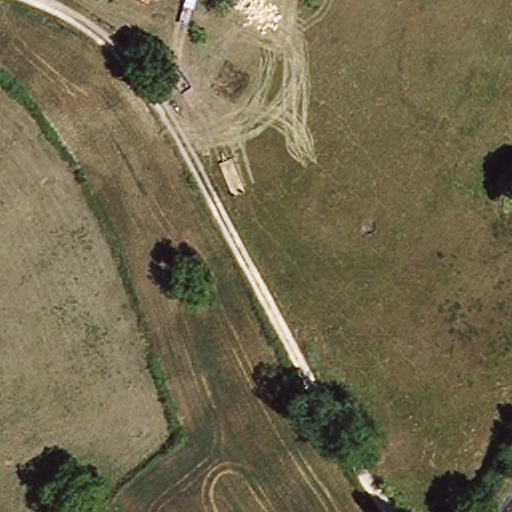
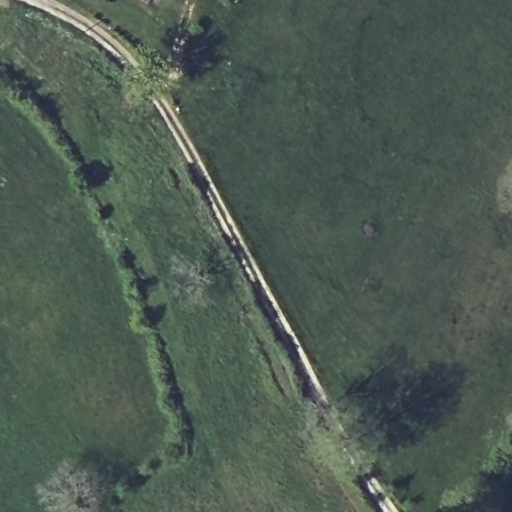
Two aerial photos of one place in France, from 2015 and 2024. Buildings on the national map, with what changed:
[]

